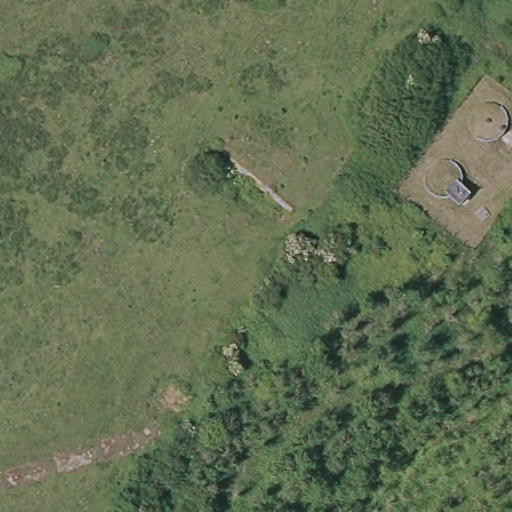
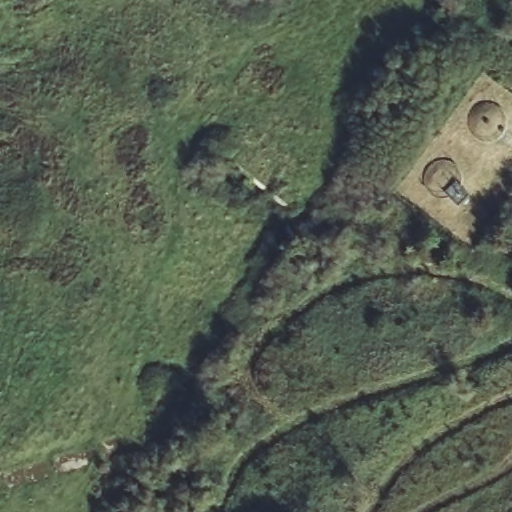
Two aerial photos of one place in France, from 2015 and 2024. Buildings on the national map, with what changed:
unchanged [(265,185),(208,141),(232,119),(287,159),(313,173),(289,205),(265,185)]

